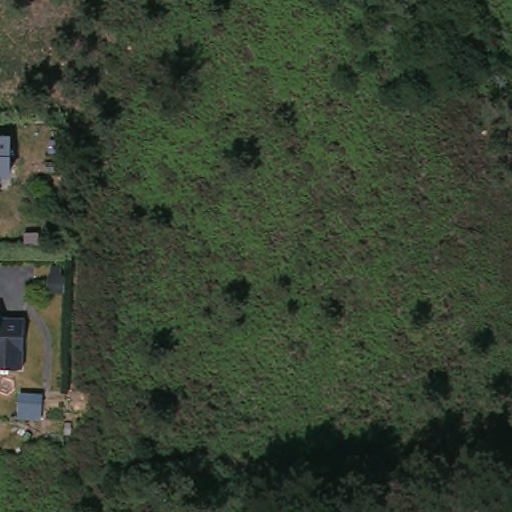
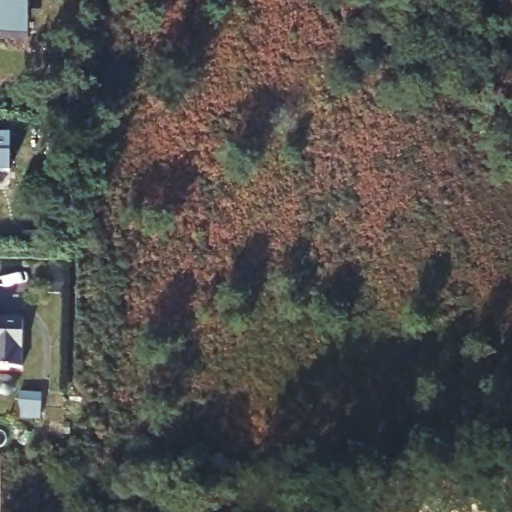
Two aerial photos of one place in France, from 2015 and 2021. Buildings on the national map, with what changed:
new [(26,37),(0,35),(0,0),(28,0),(26,37)]
unchanged [(0,175),(0,142),(9,142),(8,175),(0,175)]
unchanged [(19,372),(0,371),(0,321),(23,323),(19,372)]
unchanged [(35,422),(12,422),(13,400),(36,401),(35,422)]

